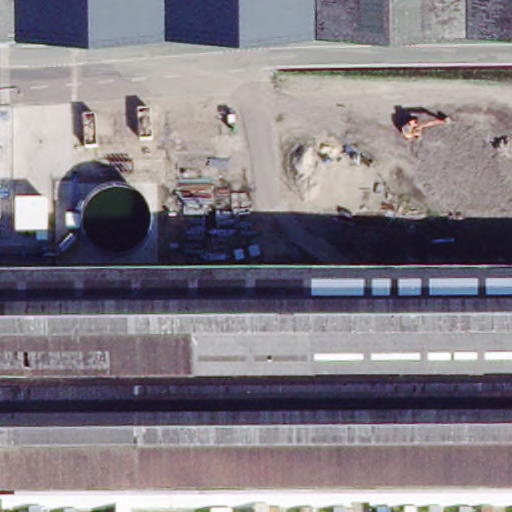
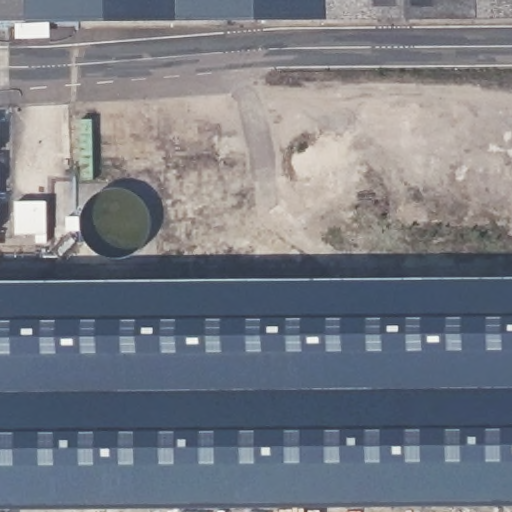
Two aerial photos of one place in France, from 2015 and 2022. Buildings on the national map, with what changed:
unchanged [(265,20),(177,22),(90,23),(41,24),(0,24),(0,0),(206,0),(243,13),(265,20)]
unchanged [(347,19),(308,20),(265,20),(243,13),(206,0),(293,0),(327,12),(347,19)]
unchanged [(347,19),(327,12),(293,0),(512,0),(512,17),(482,17),(347,19)]
unchanged [(218,512),(0,512),(0,288),(512,283),(512,511),(218,512)]

